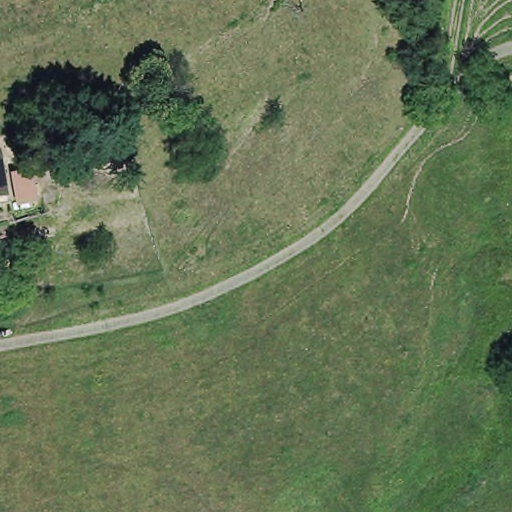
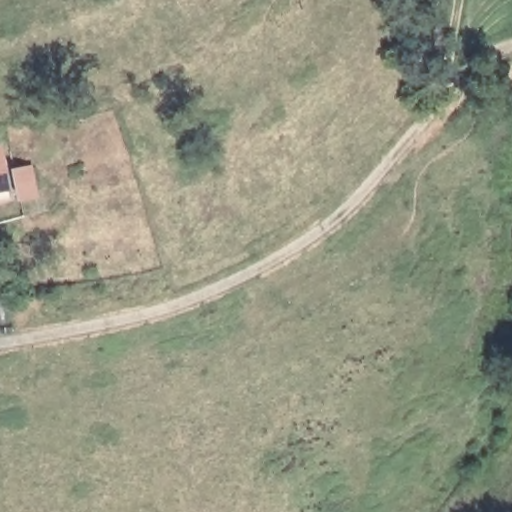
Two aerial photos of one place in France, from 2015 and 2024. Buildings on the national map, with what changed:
unchanged [(0,193),(0,141),(12,192),(0,193)]

